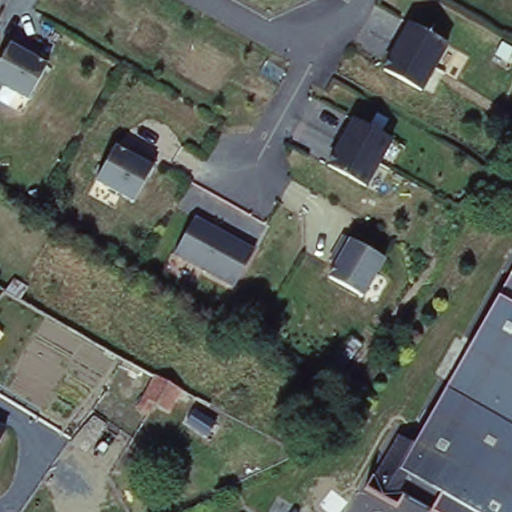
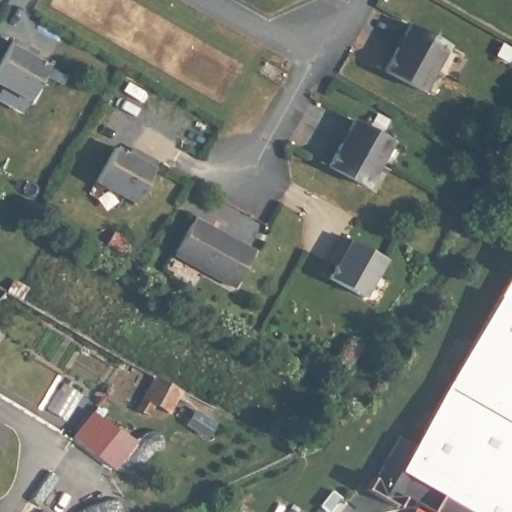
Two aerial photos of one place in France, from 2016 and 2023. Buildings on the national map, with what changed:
unchanged [(409,23),(447,43),(424,90),(386,67),(409,23)]
unchanged [(0,64),(14,41),(48,62),(25,102),(0,89),(0,64)]
unchanged [(396,140),(371,186),(331,165),(355,117),(396,140)]
unchanged [(119,145),(154,165),(131,204),(99,185),(119,145)]
unchanged [(254,249),(234,284),(177,255),(196,217),(254,249)]
unchanged [(386,257),(367,294),(330,277),(349,237),(386,257)]
unchanged [(409,437),(424,445),(512,285),(512,512),(440,512),(412,496),(408,505),(379,490),(409,437)]
unchanged [(134,413),(141,401),(143,402),(155,379),(161,383),(190,397),(188,403),(179,399),(169,417),(154,408),(146,420),(134,413)]
new [(139,438),(118,470),(73,439),(90,410),(139,438)]
unchanged [(196,414),(216,427),(209,438),(189,425),(196,414)]
unchanged [(0,434),(0,430),(1,431),(0,434)]

